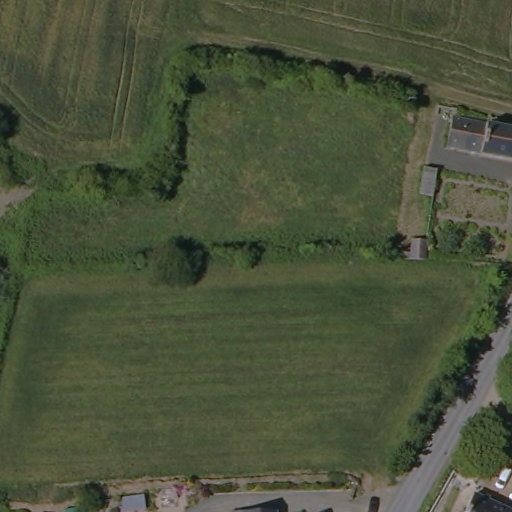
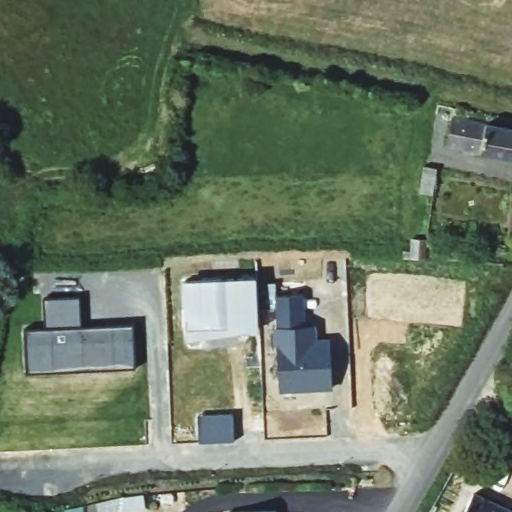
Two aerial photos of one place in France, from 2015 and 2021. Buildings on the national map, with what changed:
unchanged [(434,127),(435,122),(428,120),(431,108),(455,114),(454,119),(512,132),(512,161),(448,148),(451,131),(434,127)]
unchanged [(409,181),(423,185),(419,206),(417,205),(404,202),(409,181)]
unchanged [(512,201),(512,224),(505,221),(510,201),(512,201)]
unchanged [(411,240),(410,253),(394,254),(397,238),(411,240)]
new [(188,330),(187,282),(256,280),(257,327),(188,330)]
new [(26,377),(25,359),(23,332),(44,331),(43,301),(80,299),(81,329),(134,326),(136,367),(136,372),(26,377)]
new [(316,326),(317,341),(331,340),(333,365),(334,391),(281,393),(279,367),(278,346),(277,346),(277,328),(316,326)]
unchanged [(466,512),(472,496),(511,512),(466,512)]
unchanged [(280,512),(231,512),(230,504),(280,502),(280,512)]

